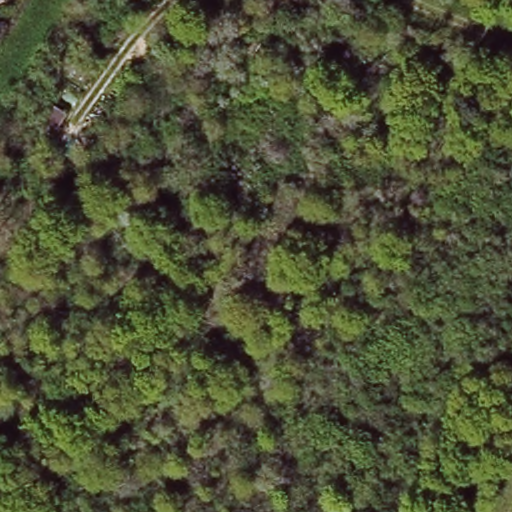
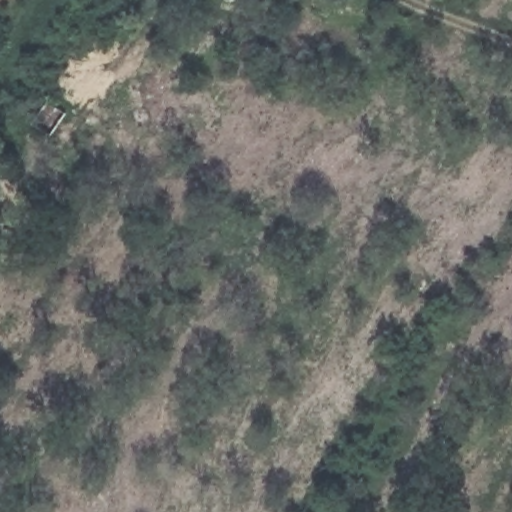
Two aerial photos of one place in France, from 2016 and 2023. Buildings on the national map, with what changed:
unchanged [(258,41),(240,70),(227,62),(245,34),(258,41)]

